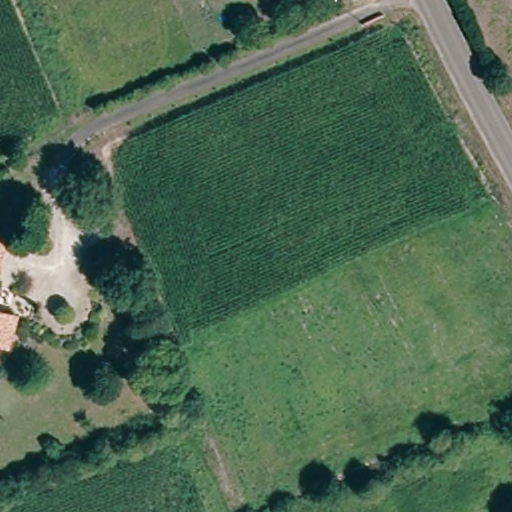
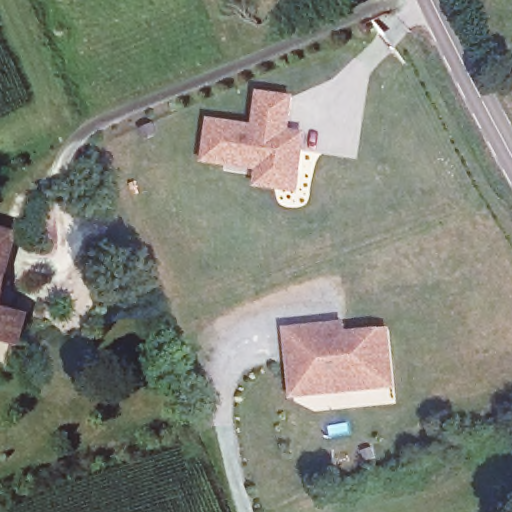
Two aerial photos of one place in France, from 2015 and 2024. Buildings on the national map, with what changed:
new [(253,185),(256,169),(202,162),(207,118),(254,124),(258,89),(296,95),(291,130),(307,132),(298,192),(253,185)]
unchanged [(7,232),(0,261),(0,231),(7,232)]
unchanged [(25,312),(15,345),(5,342),(0,341),(0,305),(25,312)]
new [(308,407),(302,341),(341,337),(358,335),(359,345),(402,340),(408,395),(363,400),(338,403),(308,407)]

